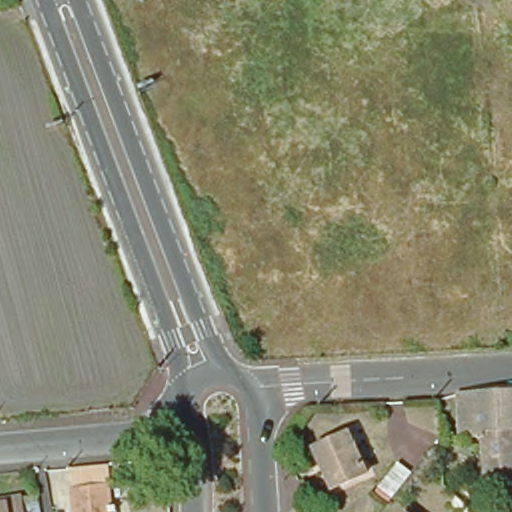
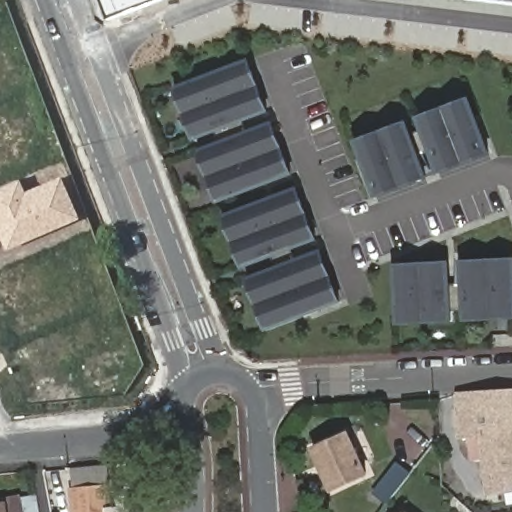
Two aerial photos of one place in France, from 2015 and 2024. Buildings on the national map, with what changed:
new [(110,35),(96,0),(198,0),(110,35)]
new [(512,2),(493,0),(512,0),(512,2)]
new [(213,132),(194,139),(174,87),(249,58),(270,112),(245,121),(248,130),(275,121),(295,172),(218,202),(198,148),(216,142),(213,132)]
new [(376,198),(354,139),(405,118),(412,136),(423,132),(417,116),(470,97),(490,154),(438,173),(430,151),(420,156),(430,177),(376,198)]
new [(16,179),(22,191),(59,176),(76,219),(4,250),(0,241),(0,186),(16,179)]
new [(291,249),(295,258),(323,249),(342,302),(265,331),(245,278),(273,267),(270,258),(241,269),(221,215),(299,187),(318,239),(291,249)]
new [(461,284),(460,259),(512,258),(512,319),(462,322),(462,310),(451,311),(451,322),(395,325),(393,263),(450,261),(450,284),(461,284)]
unchanged [(480,438),(458,439),(458,394),(512,391),(512,490),(487,493),(480,438)]
unchanged [(315,448),(347,433),(365,473),(333,487),(315,448)]
unchanged [(398,463),(410,473),(392,497),(378,486),(398,463)]
unchanged [(89,482),(113,480),(115,512),(77,512),(75,483),(89,482)]
unchanged [(28,512),(0,512),(0,508),(26,502),(28,512)]

